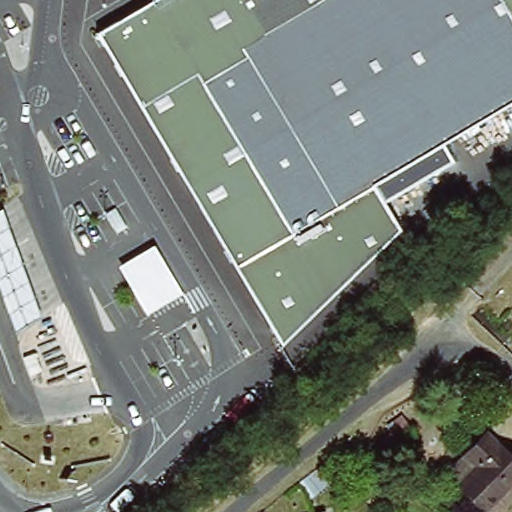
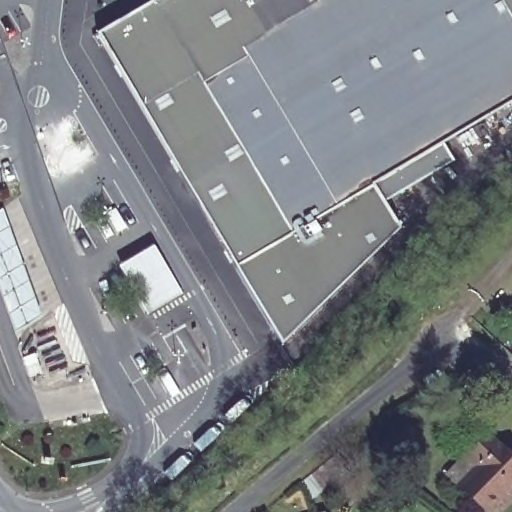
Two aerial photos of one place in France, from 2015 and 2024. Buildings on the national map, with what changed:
unchanged [(158,0),(512,0),(512,102),(373,186),(400,229),(283,343),(101,34),(158,0)]
unchanged [(43,317),(18,332),(0,287),(0,211),(2,210),(43,317)]
unchanged [(181,294),(148,314),(120,265),(153,247),(181,294)]
unchanged [(400,451),(391,438),(407,426),(417,438),(400,451)]
unchanged [(463,486),(479,466),(467,455),(487,432),(512,453),(512,500),(502,512),(493,512),(463,486)]

